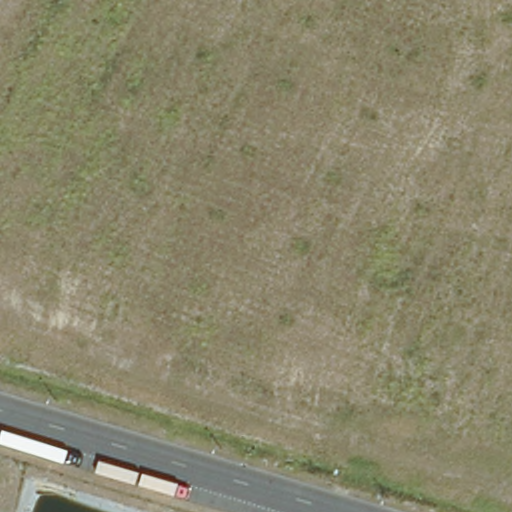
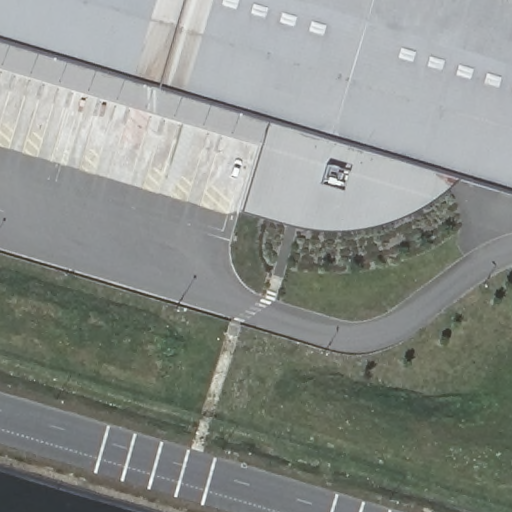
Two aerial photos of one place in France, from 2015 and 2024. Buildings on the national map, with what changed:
new [(461,180),(407,219),(324,231),(249,212),(276,121),(0,39),(0,0),(512,0),(512,195),(461,180)]

